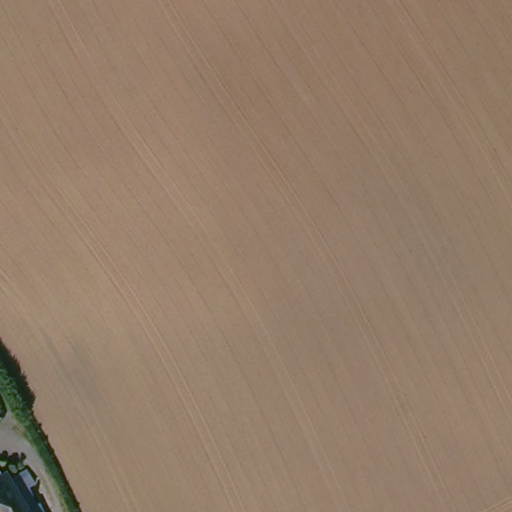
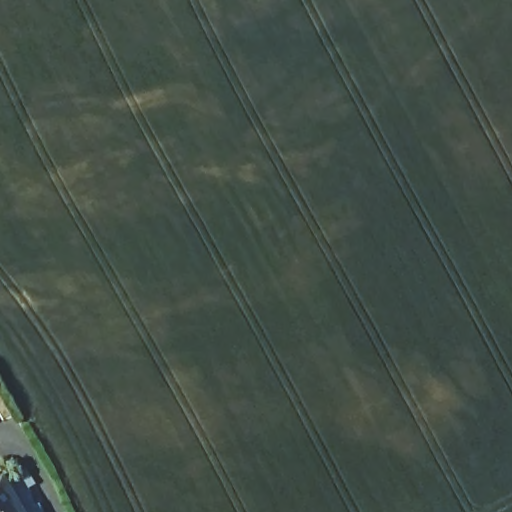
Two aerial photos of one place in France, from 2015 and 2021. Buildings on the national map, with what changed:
unchanged [(38,512),(0,512),(0,486),(16,476),(38,512)]

